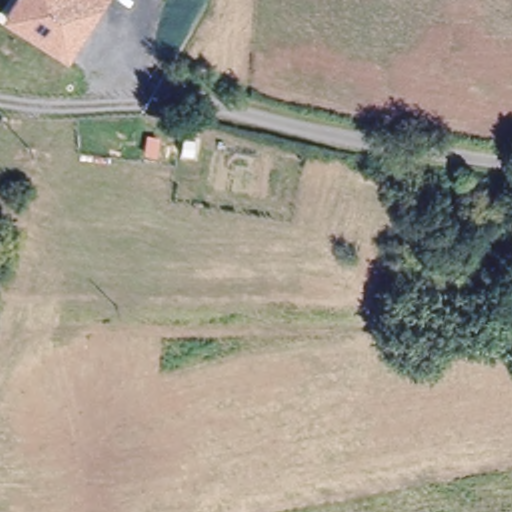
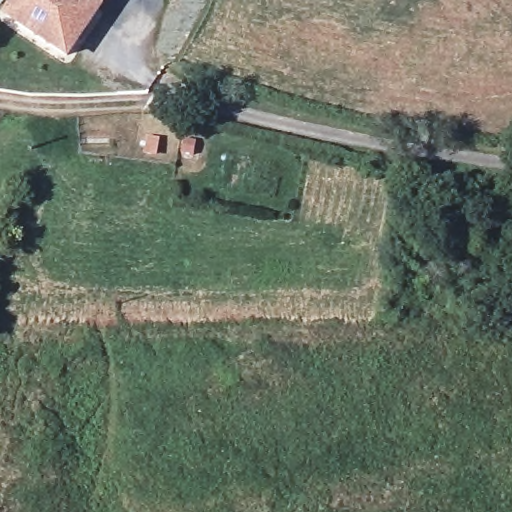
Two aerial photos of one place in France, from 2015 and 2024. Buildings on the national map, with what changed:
unchanged [(18,0),(105,0),(72,51),(9,15),(18,0)]

